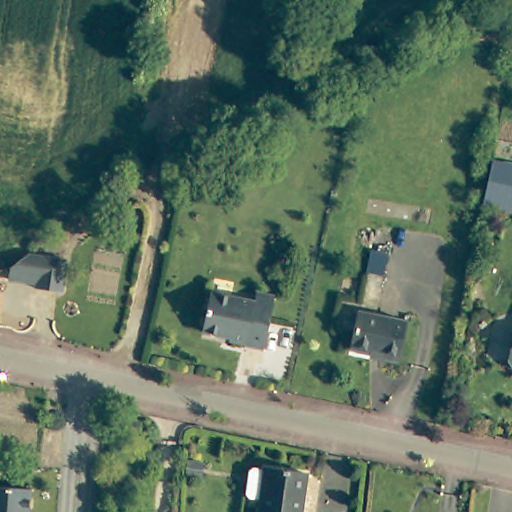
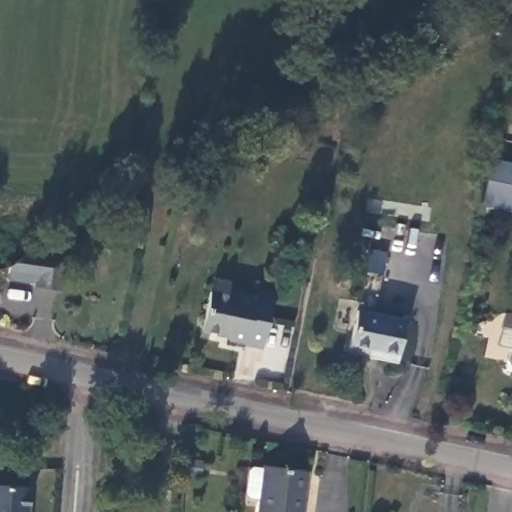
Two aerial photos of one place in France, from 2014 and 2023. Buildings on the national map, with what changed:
unchanged [(483,204),(489,172),(493,157),(512,160),(512,209),(483,204)]
unchanged [(64,248),(69,248),(65,282),(43,282),(36,282),(38,272),(13,271),(8,271),(9,266),(9,265),(28,248),(39,248),(64,248)]
unchanged [(382,353),(383,350),(351,342),(359,305),(364,305),(372,267),(388,271),(379,308),(409,314),(399,356),(382,353)]
unchanged [(259,345),(259,347),(241,343),(242,340),(226,336),(227,335),(201,327),(211,285),(227,290),(226,290),(238,295),(238,293),(253,298),(254,287),(262,290),(279,288),(264,355),(262,345),(259,345)]
unchanged [(510,376),(506,368),(508,358),(512,355),(512,377),(510,376)]
unchanged [(257,475),(269,476),(269,472),(311,477),(307,512),(265,512),(266,506),(254,505),(249,501),(252,488),(252,479),(257,475)]
unchanged [(28,512),(0,512),(0,484),(31,486),(28,512)]

